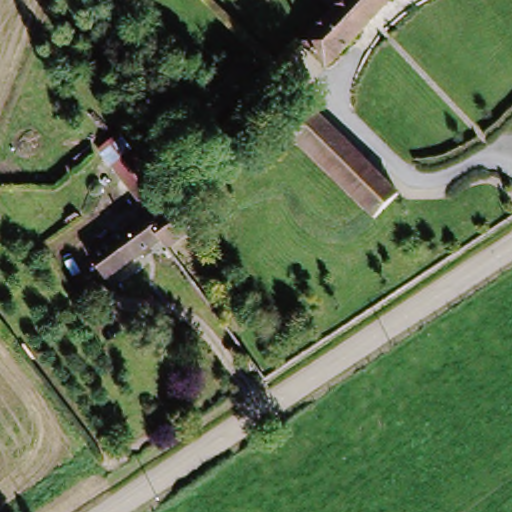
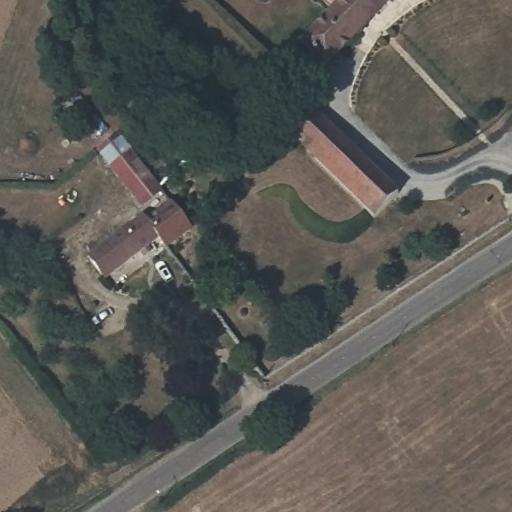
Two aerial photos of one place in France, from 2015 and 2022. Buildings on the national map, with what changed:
unchanged [(321,67),(296,44),(337,0),(386,0),(321,67)]
unchanged [(285,137),(310,111),(404,202),(380,229),(285,137)]
unchanged [(147,210),(111,161),(103,149),(119,135),(127,147),(164,193),(147,210)]
unchanged [(195,237),(103,290),(81,261),(170,200),(195,237)]

